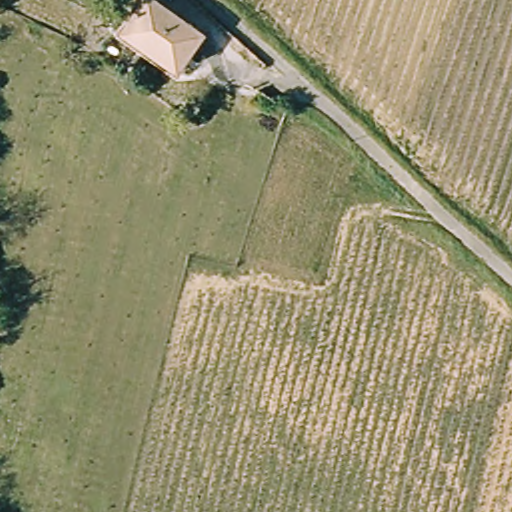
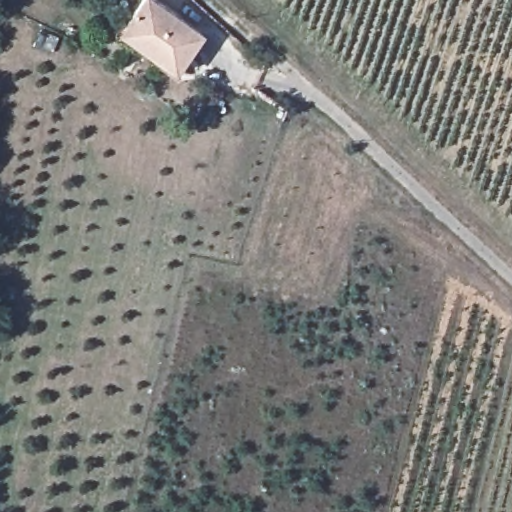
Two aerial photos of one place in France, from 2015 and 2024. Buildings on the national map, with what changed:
unchanged [(177,74),(147,52),(153,44),(125,25),(142,0),(157,0),(204,34),(206,35),(202,40),(177,74)]

